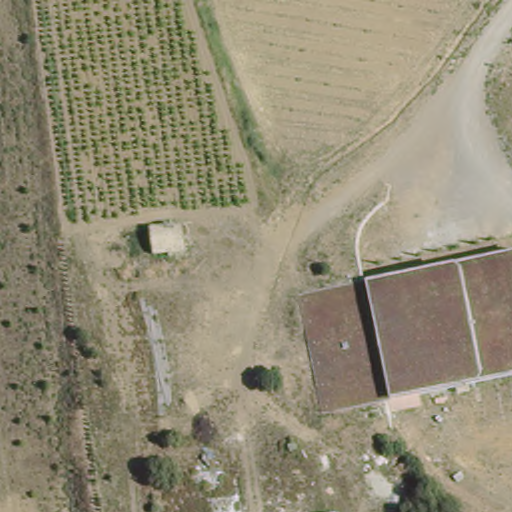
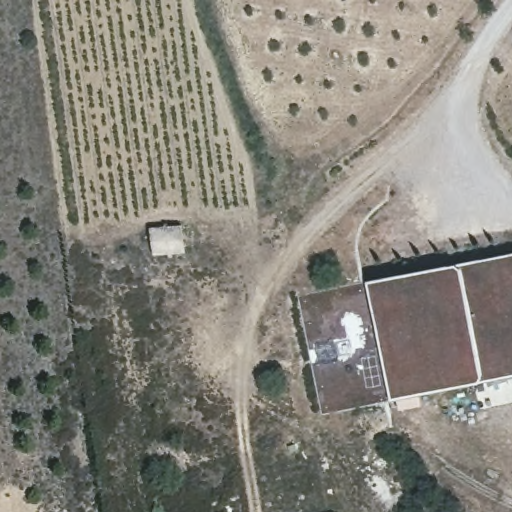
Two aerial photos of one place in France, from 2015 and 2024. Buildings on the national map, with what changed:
unchanged [(155,255),(152,228),(182,225),(185,253),(155,255)]
unchanged [(479,381),(417,394),(421,407),(390,413),(387,401),(321,414),(300,297),(367,282),(456,266),(512,254),(512,374),(479,381)]

